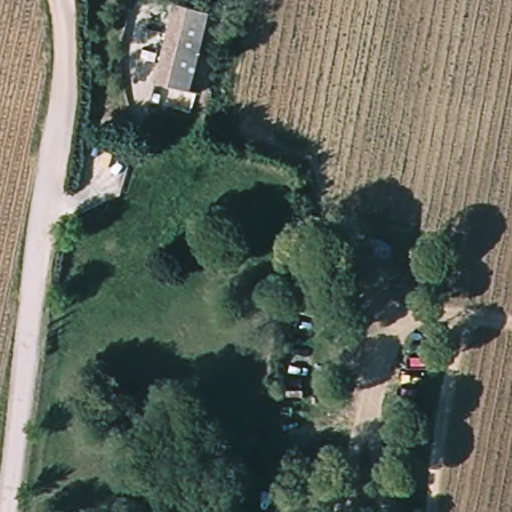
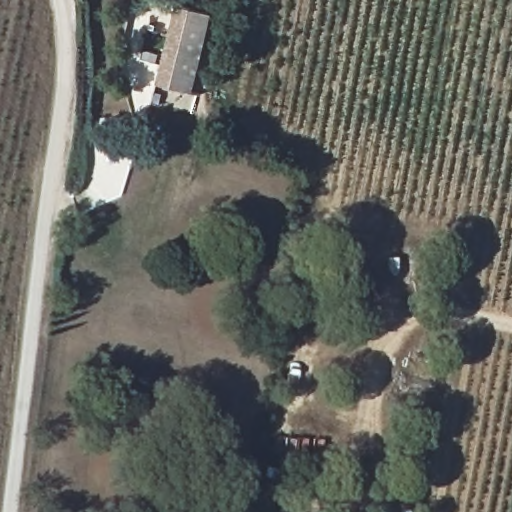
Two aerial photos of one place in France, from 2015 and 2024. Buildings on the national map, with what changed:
unchanged [(162,76),(165,61),(160,60),(172,4),(204,11),(193,67),(186,65),(183,80),(162,76)]

